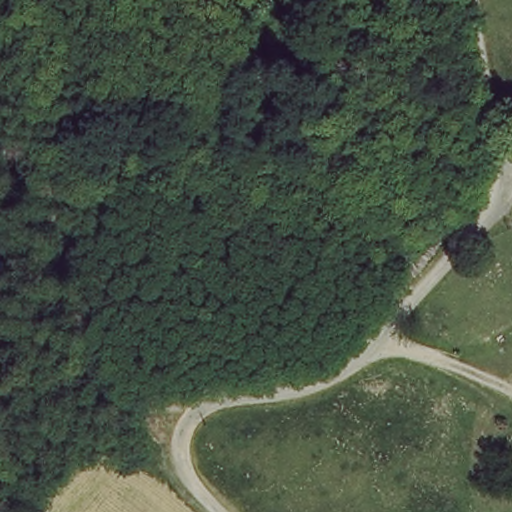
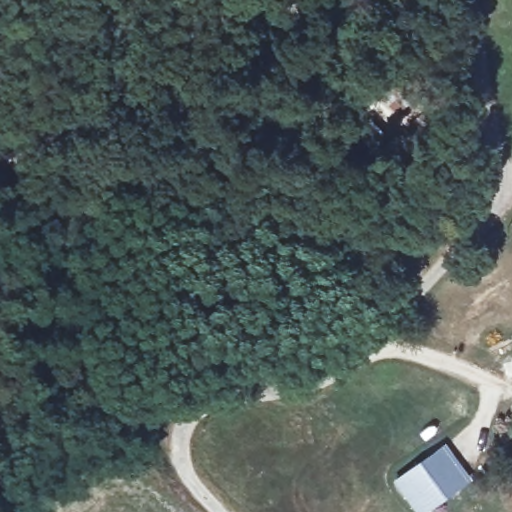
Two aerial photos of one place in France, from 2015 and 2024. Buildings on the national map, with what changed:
new [(472,482),(430,512),(413,512),(391,482),(444,443),(472,482)]

